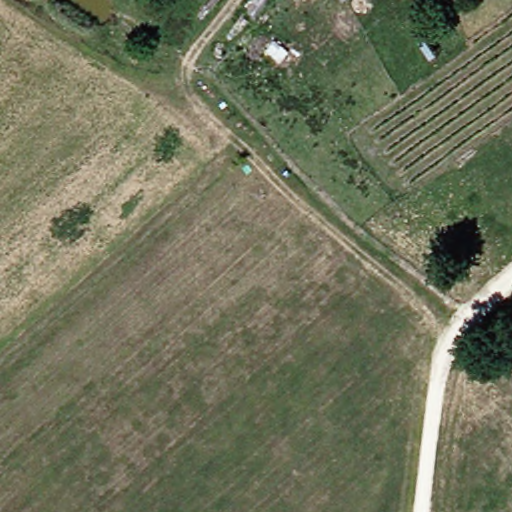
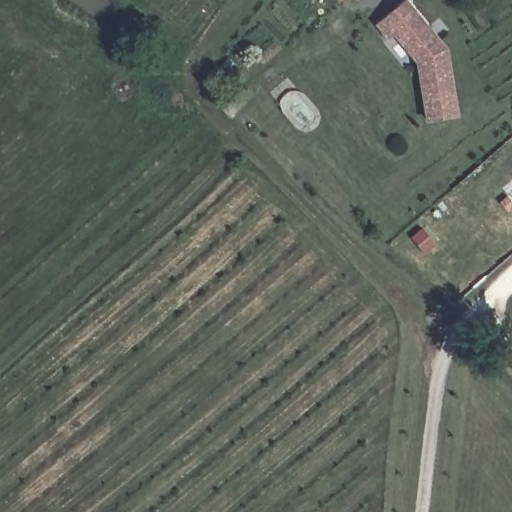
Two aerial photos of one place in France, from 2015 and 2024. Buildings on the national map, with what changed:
new [(459,118),(426,122),(418,62),(394,36),(390,39),(377,23),(404,0),(411,0),(449,47),(459,118)]

